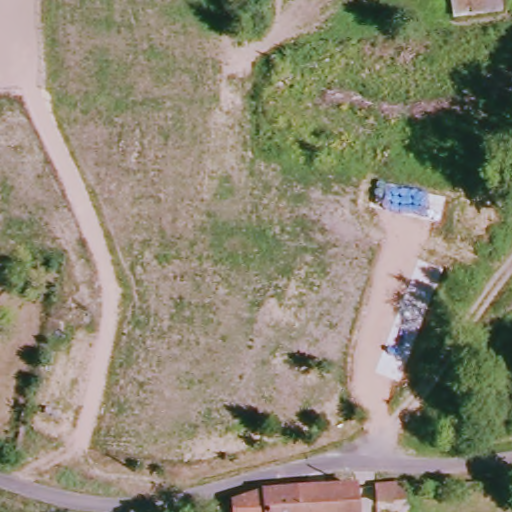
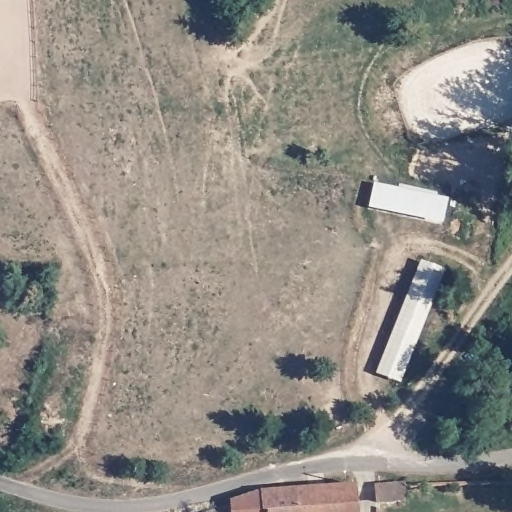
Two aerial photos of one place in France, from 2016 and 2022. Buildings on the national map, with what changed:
unchanged [(497,28),(460,34),(454,0),(491,0),(497,28)]
new [(442,223),(369,208),(375,184),(448,200),(442,223)]
new [(445,271),(400,383),(376,374),(421,262),(445,271)]
unchanged [(409,500),(380,500),(380,486),(407,485),(409,500)]
unchanged [(355,490),(358,512),(236,512),(235,503),(270,493),(355,490)]

